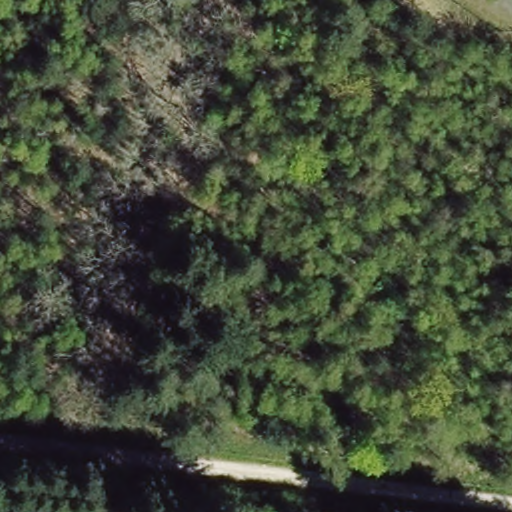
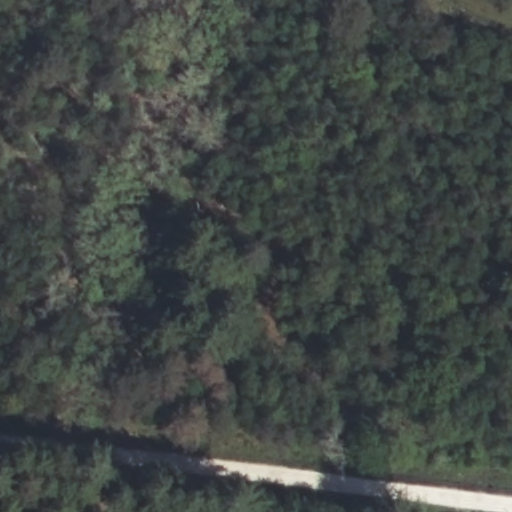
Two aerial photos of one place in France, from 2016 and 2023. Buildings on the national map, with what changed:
[]

